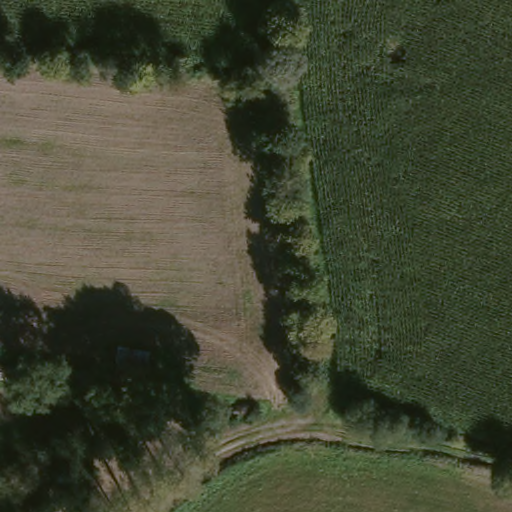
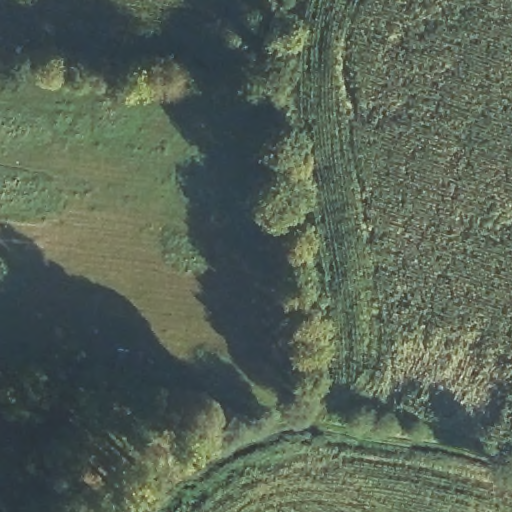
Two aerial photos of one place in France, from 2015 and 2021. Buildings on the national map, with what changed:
unchanged [(4,512),(0,512),(0,487),(2,486),(4,512)]

